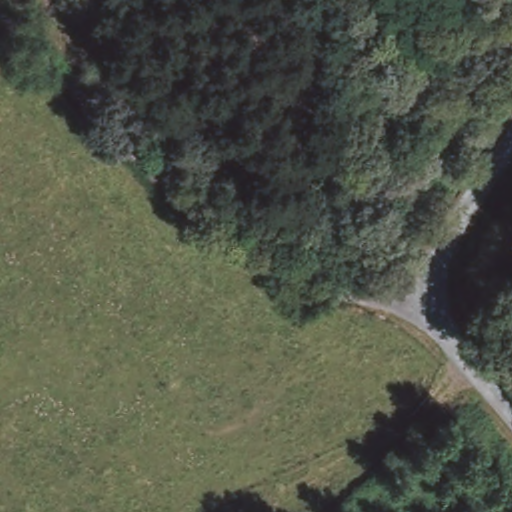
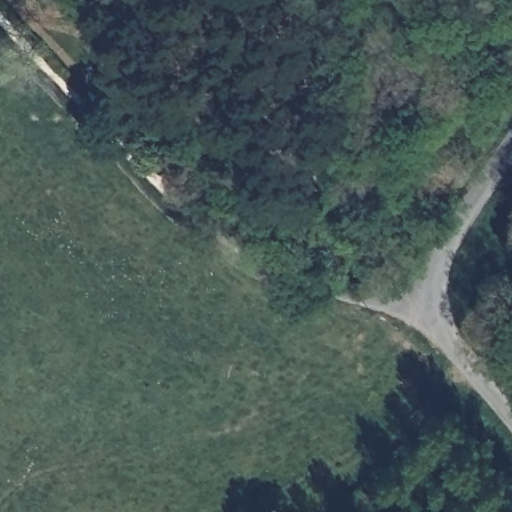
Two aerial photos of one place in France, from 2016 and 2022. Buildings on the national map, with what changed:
[]

